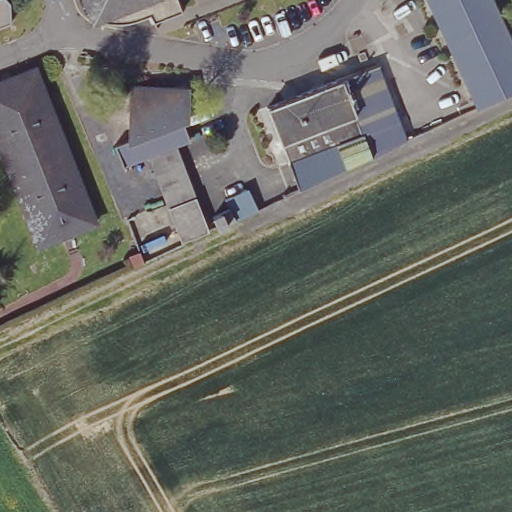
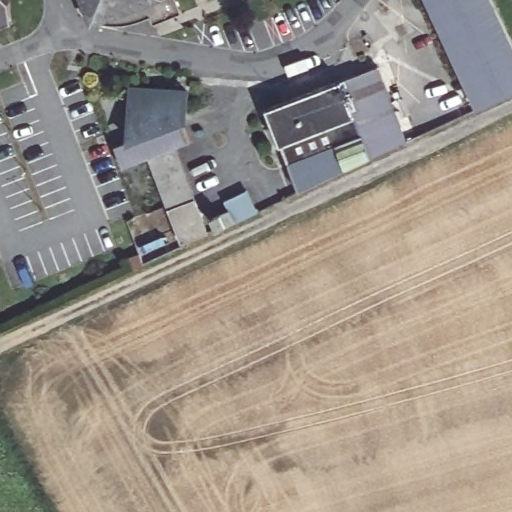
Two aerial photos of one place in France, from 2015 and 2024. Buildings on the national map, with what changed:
unchanged [(0,32),(0,0),(18,0),(25,22),(0,32)]
unchanged [(164,0),(95,28),(83,0),(164,0)]
unchanged [(486,115),(432,0),(506,0),(512,14),(512,101),(486,115)]
demolished [(47,250),(0,140),(0,87),(50,65),(107,225),(47,250)]
unchanged [(408,117),(376,136),(386,159),(307,190),(274,107),(389,65),(408,117)]
unchanged [(125,166),(117,147),(128,141),(130,85),(191,90),(192,114),(144,129),(153,156),(125,166)]
unchanged [(220,207),(241,199),(250,220),(240,224),(223,232),(185,247),(144,129),(192,114),(203,137),(187,144),(218,221),(224,219),(220,207)]

